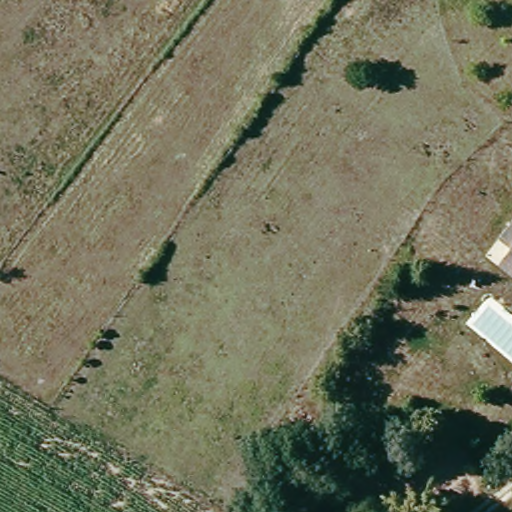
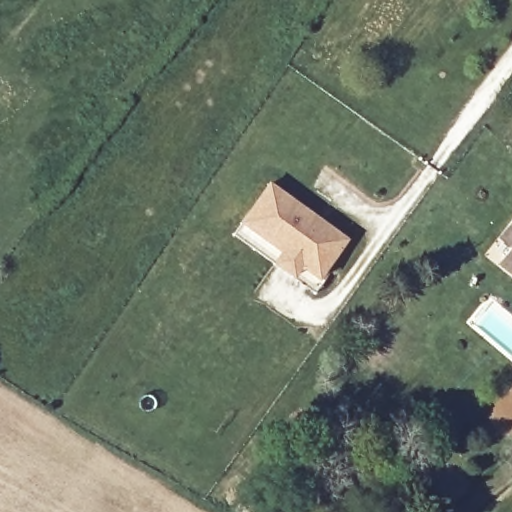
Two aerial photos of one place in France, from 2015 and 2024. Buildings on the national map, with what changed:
new [(279,252),(239,223),(269,181),(348,240),(319,280),(300,267),(293,278),(272,264),(279,252)]
unchanged [(512,232),(512,257),(500,246),(512,232)]

